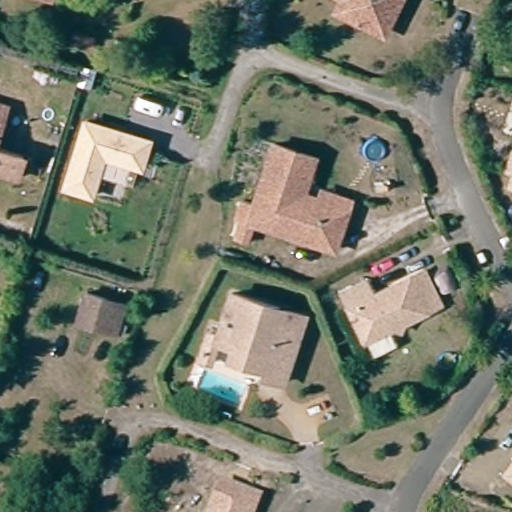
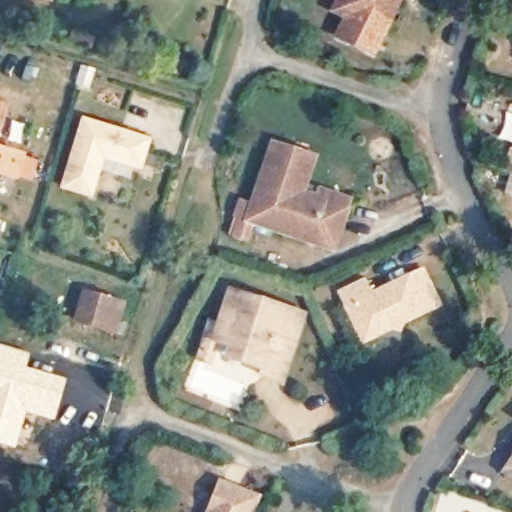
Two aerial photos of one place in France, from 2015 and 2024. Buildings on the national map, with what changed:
new [(385,40),(330,11),(335,0),(405,0),(385,40)]
demolished [(400,2),(392,21),(372,30),(353,21),(345,1),(345,0),(399,0),(400,2)]
unchanged [(0,124),(0,108),(5,110),(0,124)]
unchanged [(60,189),(81,117),(153,139),(144,170),(104,160),(94,199),(60,189)]
unchanged [(240,243),(246,224),(242,222),(247,205),(259,209),(278,148),(320,161),(307,201),(323,206),(327,194),(356,203),(352,216),(341,252),(259,227),(253,246),(240,243)]
unchanged [(0,152),(21,159),(18,169),(15,179),(0,175),(0,152)]
unchanged [(367,340),(351,305),(344,291),(369,279),(376,293),(413,276),(427,270),(443,304),(429,310),(393,327),(367,340)]
unchanged [(234,340),(216,334),(230,290),(302,313),(281,379),(262,373),(264,366),(229,355),(234,340)]
unchanged [(124,338),(116,336),(78,325),(86,296),(125,307),(119,325),(127,328),(124,338)]
unchanged [(367,340),(393,327),(400,341),(363,358),(341,310),(351,305),(367,340)]
unchanged [(206,331),(216,334),(208,360),(198,356),(206,331)]
new [(26,367),(67,380),(55,421),(26,412),(15,449),(0,445),(0,344),(30,353),(26,367)]
unchanged [(504,470),(512,458),(512,476),(504,470)]
unchanged [(222,483),(258,496),(252,512),(217,512),(212,510),(222,483)]
unchanged [(217,512),(211,512),(212,510),(217,512)]

